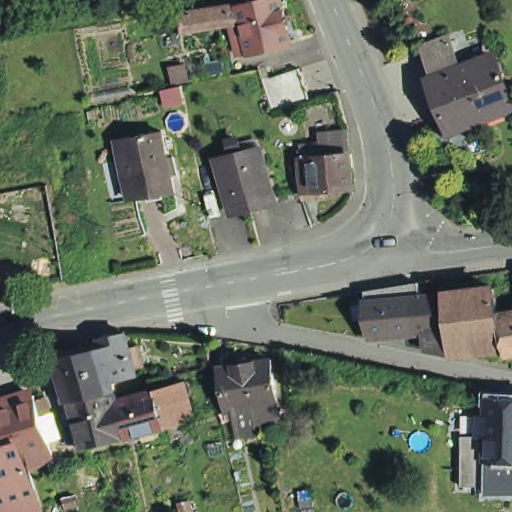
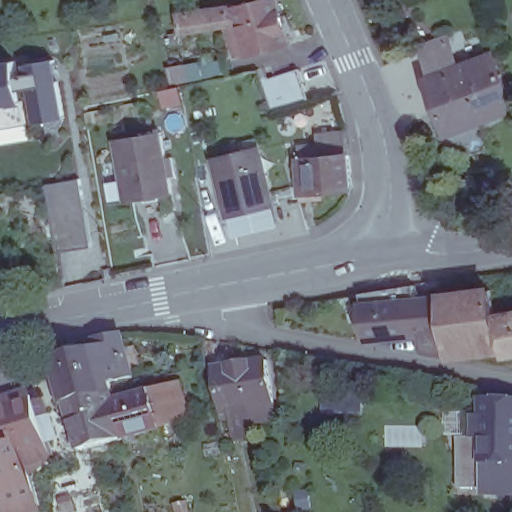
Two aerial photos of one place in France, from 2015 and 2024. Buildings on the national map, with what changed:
unchanged [(244,12),(283,3),(294,49),(243,61),(235,25),(188,36),(185,24),(232,12),(243,10),(244,12)]
unchanged [(452,35),(463,64),(432,75),(421,46),(452,35)]
unchanged [(495,52),(501,70),(504,69),(505,72),(502,73),(510,96),(470,111),(472,118),(450,126),(432,75),(463,64),(495,52)]
new [(33,123),(28,88),(22,89),(25,102),(0,106),(0,63),(17,59),(18,64),(55,57),(66,116),(33,123)]
unchanged [(262,81),(300,72),(310,102),(272,115),(262,81)]
unchanged [(117,139),(123,138),(162,131),(173,191),(135,198),(127,200),(117,139)]
unchanged [(303,202),(300,169),(322,167),(320,146),(347,140),(350,164),(353,198),(303,202)]
unchanged [(217,160),(262,149),(275,203),(230,214),(217,160)]
new [(92,246),(57,252),(45,184),(80,178),(92,246)]
unchanged [(415,280),(417,293),(442,292),(447,345),(447,351),(425,348),(422,327),(407,328),(400,283),(415,280)]
unchanged [(407,328),(365,333),(362,289),(400,283),(407,328)]
unchanged [(442,291),(492,284),(498,310),(502,334),(448,343),(448,345),(447,345),(442,292),(442,291)]
unchanged [(502,334),(498,310),(512,307),(512,350),(505,351),(502,334)]
unchanged [(64,403),(57,404),(50,376),(57,375),(52,359),(97,349),(95,338),(117,334),(128,377),(107,383),(108,393),(111,403),(119,440),(77,450),(64,403)]
unchanged [(252,427),(250,408),(223,412),(217,369),(270,361),(276,404),(279,423),(252,427)]
unchanged [(149,392),(173,385),(182,420),(158,426),(158,428),(119,440),(111,403),(149,392)]
unchanged [(50,454),(40,464),(20,396),(35,392),(41,412),(51,445),(50,454)]
new [(364,414),(344,414),(325,414),(325,395),(345,395),(364,395),(364,414)]
unchanged [(0,424),(0,402),(20,396),(40,464),(30,468),(39,507),(25,511),(0,424)]
unchanged [(477,436),(477,417),(485,417),(485,398),(512,399),(512,463),(477,462),(477,436)]
unchanged [(22,512),(0,512),(0,424),(25,511),(22,512)]
unchanged [(506,512),(450,511),(453,436),(477,436),(477,462),(512,463),(512,512),(506,512)]

